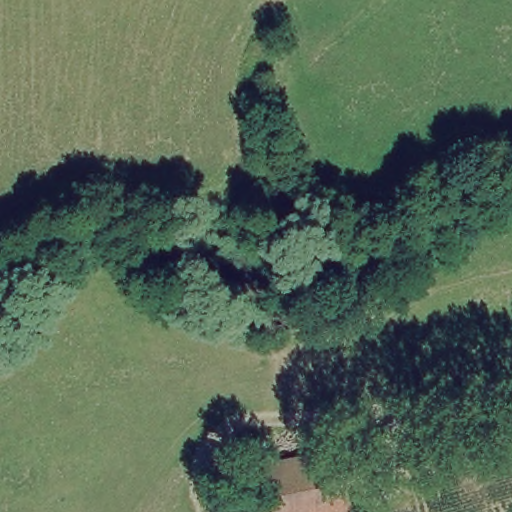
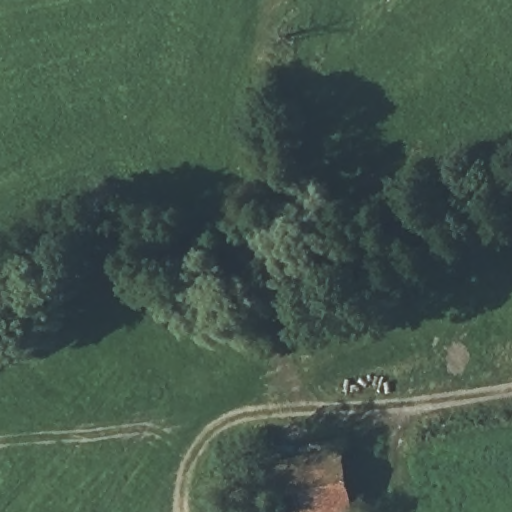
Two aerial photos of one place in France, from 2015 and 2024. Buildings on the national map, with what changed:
unchanged [(337,452),(348,512),(267,512),(259,467),(337,452)]

